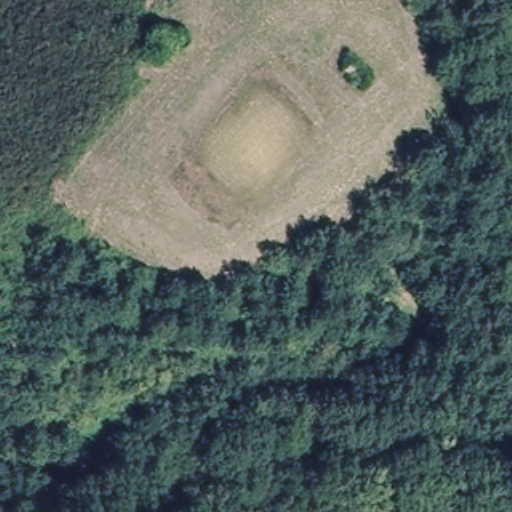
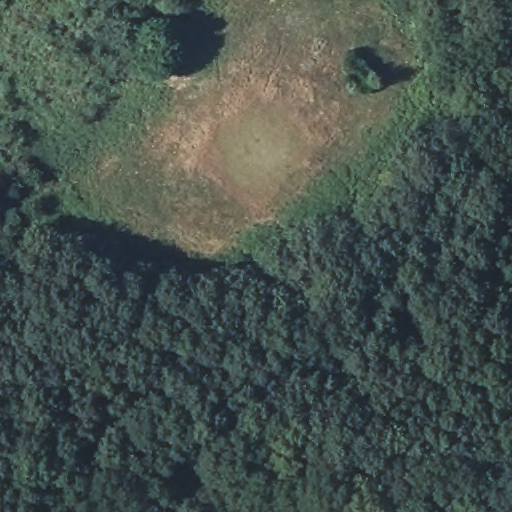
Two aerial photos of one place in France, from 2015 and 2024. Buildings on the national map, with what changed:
unchanged [(164,67),(143,53),(157,31),(176,45),(164,67)]

